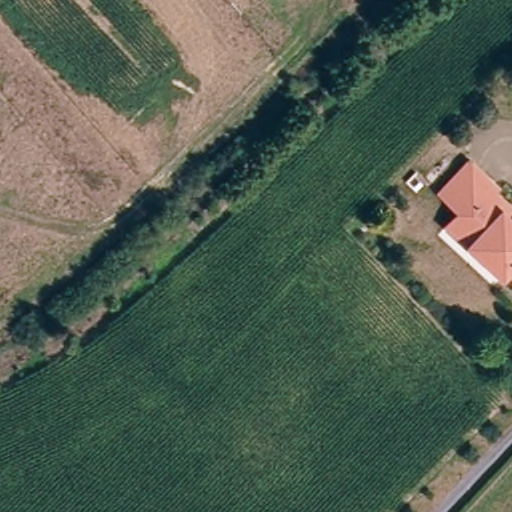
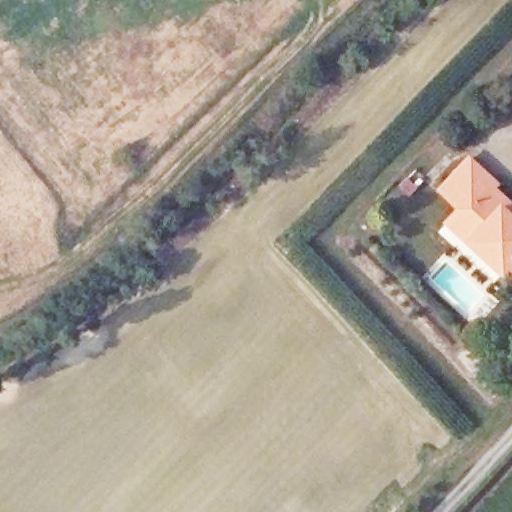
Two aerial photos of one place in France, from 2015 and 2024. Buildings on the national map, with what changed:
unchanged [(441,180),(476,150),(504,182),(496,189),(512,205),(512,274),(503,265),(495,272),(477,252),(447,220),(463,205),(441,180)]

